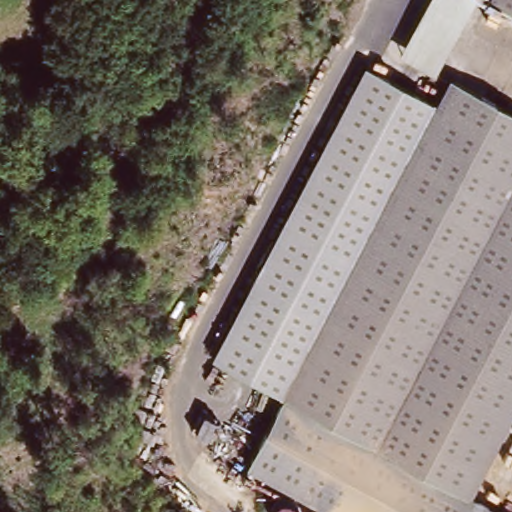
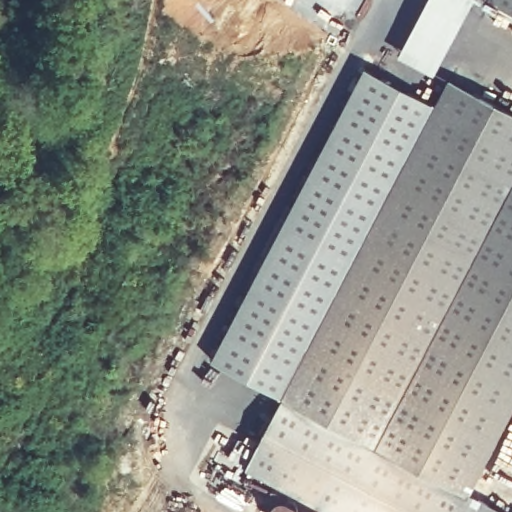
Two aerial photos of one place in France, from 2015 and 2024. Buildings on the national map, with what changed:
unchanged [(398,59),(430,0),(476,0),(433,78),(398,59)]
unchanged [(495,0),(512,0),(512,19),(491,9),(495,0)]
unchanged [(512,409),(466,498),(492,512),(320,512),(248,475),(283,405),(212,368),(367,75),(438,112),(453,84),(512,113),(512,409)]

